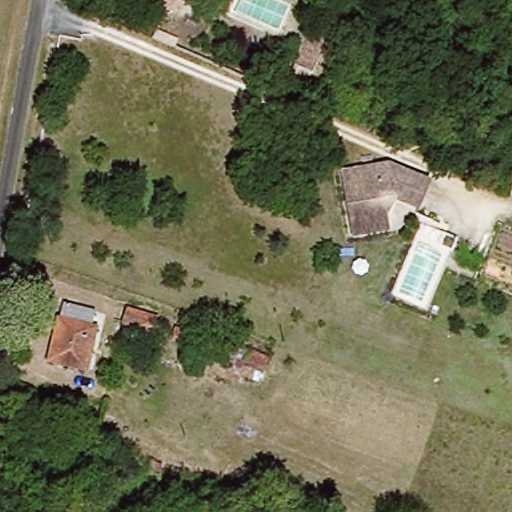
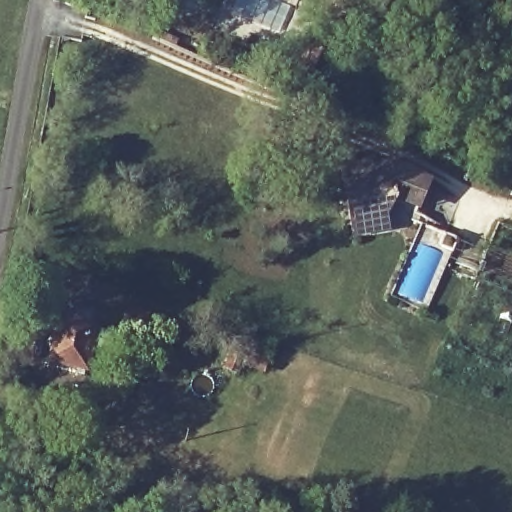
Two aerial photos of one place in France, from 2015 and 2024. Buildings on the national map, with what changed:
unchanged [(170,15),(135,0),(176,0),(170,15)]
unchanged [(382,61),(396,66),(379,102),(366,95),(382,61)]
unchanged [(355,221),(346,174),(392,167),(430,184),(417,208),(392,199),(382,202),(385,216),(388,235),(358,241),(355,221)]
unchanged [(50,363),(59,323),(63,324),(66,312),(92,318),(90,331),(95,333),(85,370),(50,363)]
unchanged [(176,328),(172,341),(146,333),(149,321),(176,328)]
unchanged [(226,348),(267,362),(263,375),(242,368),(240,374),(220,368),(226,348)]

